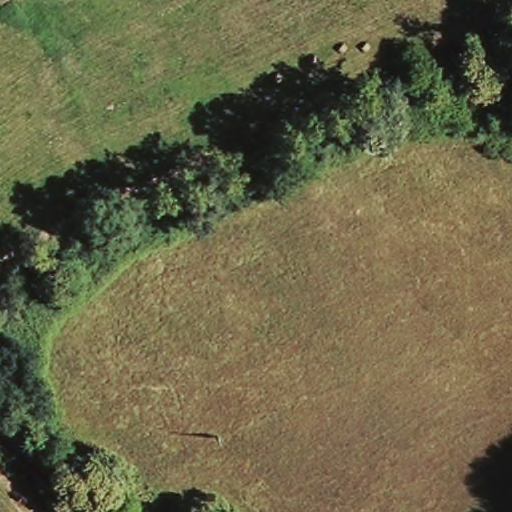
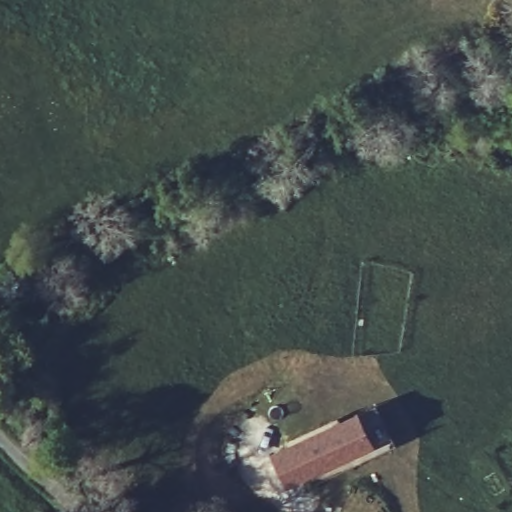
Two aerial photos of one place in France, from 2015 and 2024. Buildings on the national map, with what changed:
new [(375,446),(287,489),(271,455),(360,412),(375,446)]

